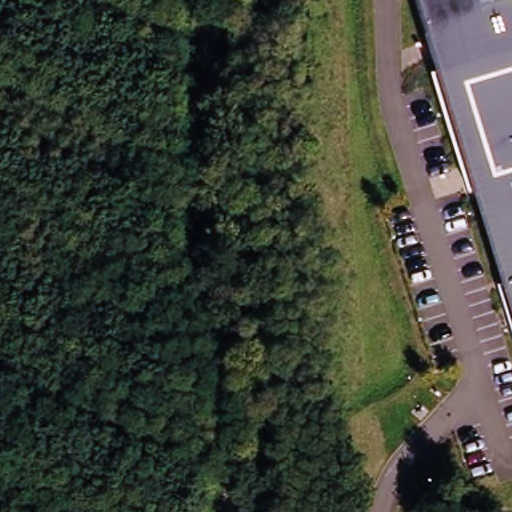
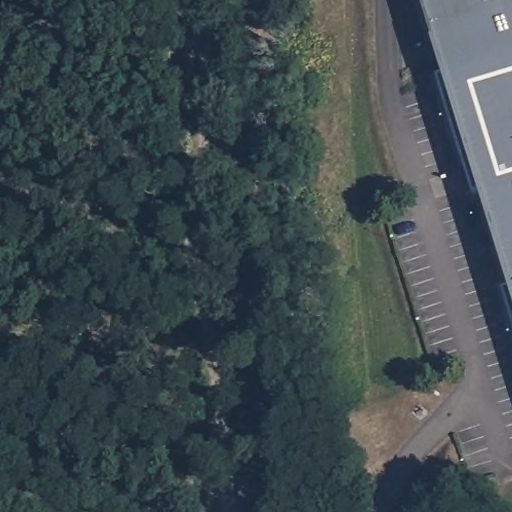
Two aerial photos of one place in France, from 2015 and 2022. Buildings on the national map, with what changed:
unchanged [(511,287),(482,191),(473,194),(436,78),(446,75),(423,0),(512,0),(512,323),(501,289),(511,287)]

